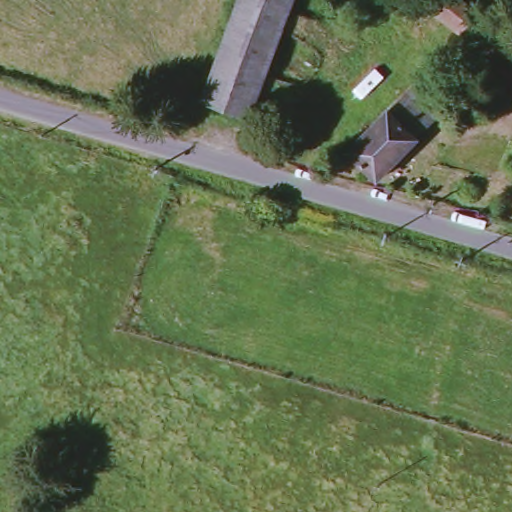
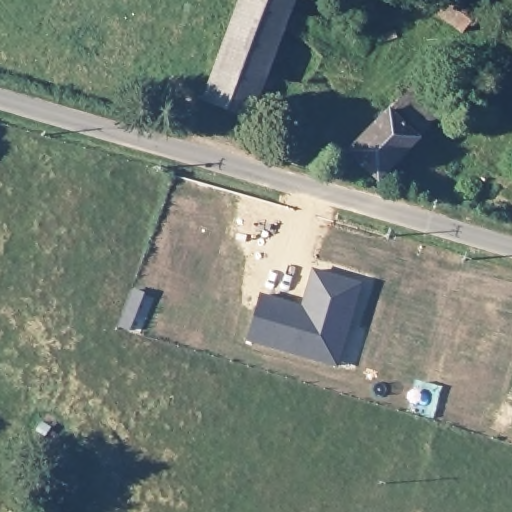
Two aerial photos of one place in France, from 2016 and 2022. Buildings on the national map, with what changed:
unchanged [(255,118),(206,99),(241,0),(297,0),(255,118)]
unchanged [(463,36),(420,3),(423,0),(466,0),(481,11),(463,36)]
unchanged [(512,76),(512,96),(502,89),(512,76)]
unchanged [(350,150),(390,108),(392,110),(415,87),(441,111),(417,136),(421,139),(381,180),(350,150)]
new [(358,285),(346,326),(335,323),(325,362),(246,341),(260,296),(301,308),(312,271),(358,285)]

